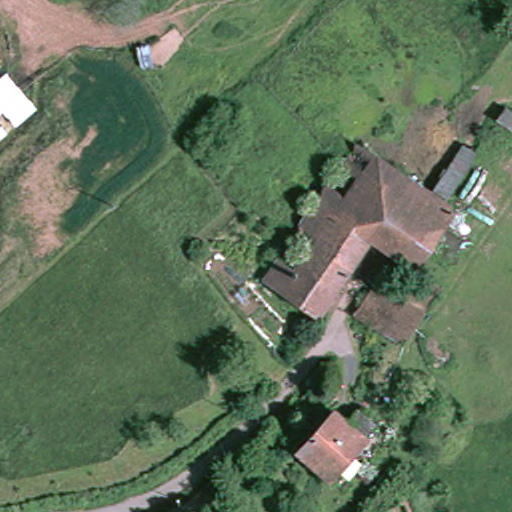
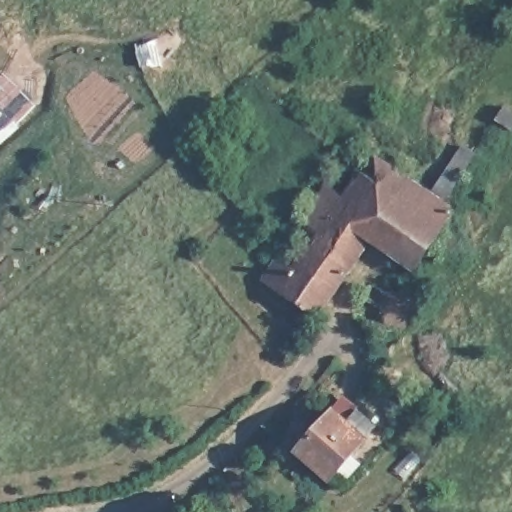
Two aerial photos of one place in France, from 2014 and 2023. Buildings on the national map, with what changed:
unchanged [(449,212),(457,217),(418,272),(377,244),(323,319),(267,279),(283,257),(291,262),(295,256),(302,261),(313,246),(299,235),(334,186),(361,149),(378,161),(426,196),(449,212)]
unchanged [(465,149),(480,159),(452,209),(449,212),(426,196),(465,149)]
unchanged [(396,338),(369,317),(394,285),(422,306),(396,338)]
unchanged [(347,480),(339,472),(331,480),(300,452),(333,416),(347,430),(360,416),(377,431),(352,458),(360,466),(347,480)]

